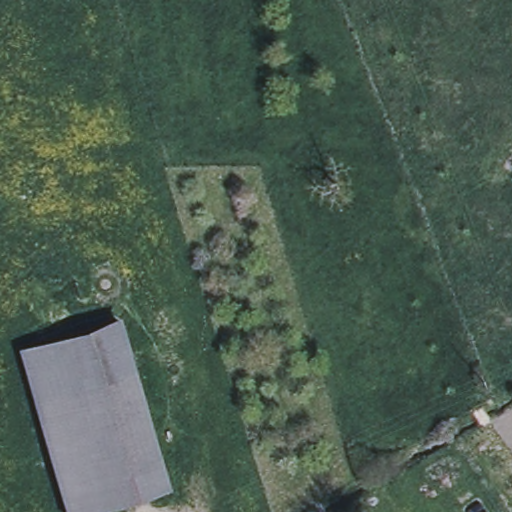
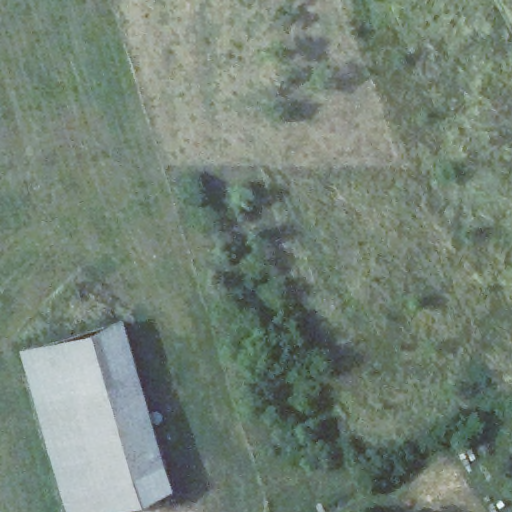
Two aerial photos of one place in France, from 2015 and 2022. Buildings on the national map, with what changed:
unchanged [(120,322),(173,489),(97,512),(72,512),(22,352),(120,322)]

